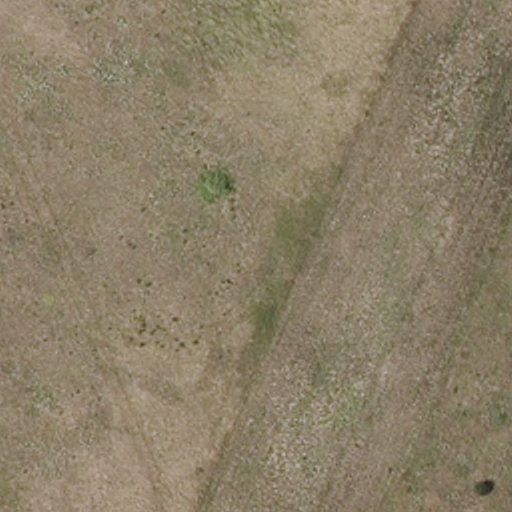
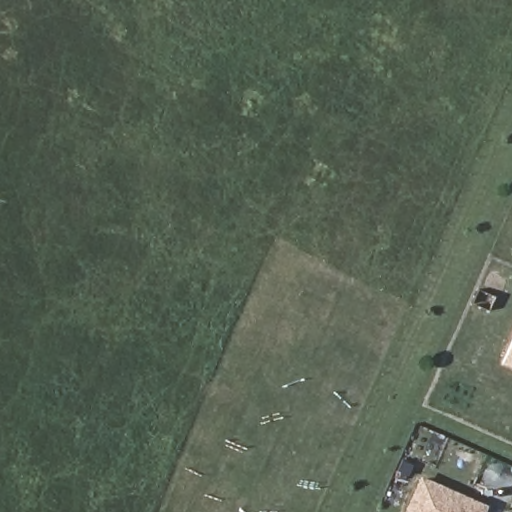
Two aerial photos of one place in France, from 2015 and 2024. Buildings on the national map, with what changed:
new [(503,365),(512,340),(512,369),(503,365)]
new [(403,512),(419,475),(487,505),(485,508),(484,512),(403,512)]

